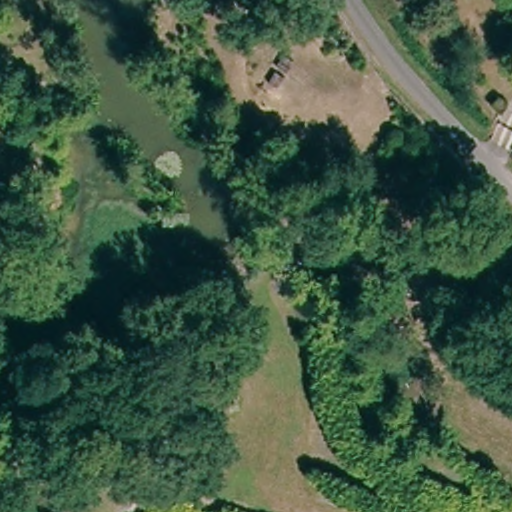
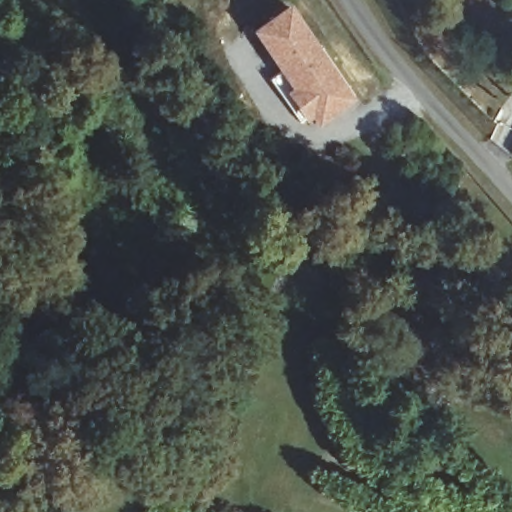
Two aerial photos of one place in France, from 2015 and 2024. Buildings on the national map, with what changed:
new [(317,127),(311,119),(305,123),(301,117),(299,124),(269,80),(278,70),(250,31),(290,4),(356,100),(317,127)]

